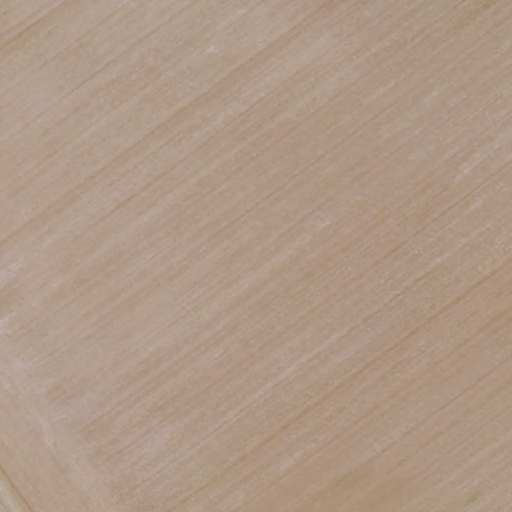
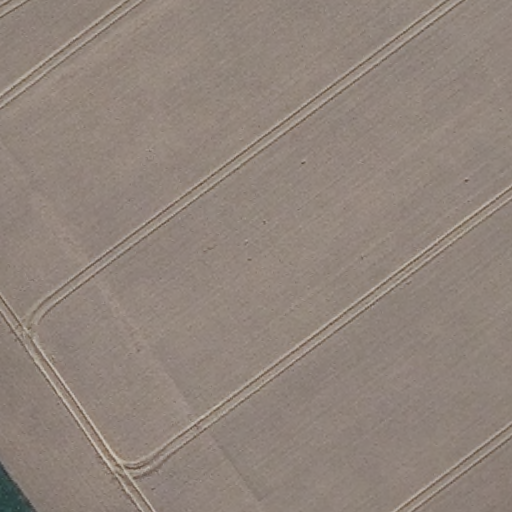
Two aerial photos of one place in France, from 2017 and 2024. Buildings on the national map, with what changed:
[]

